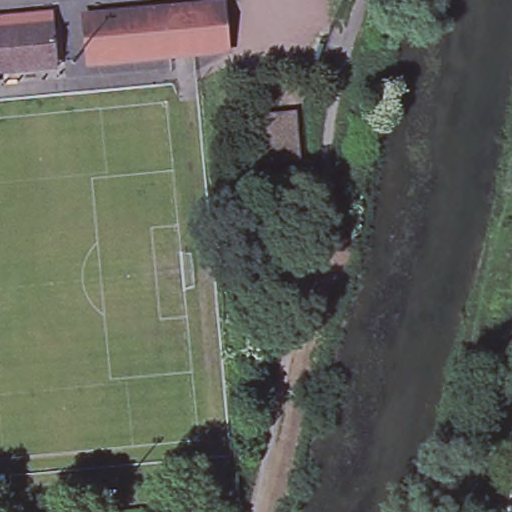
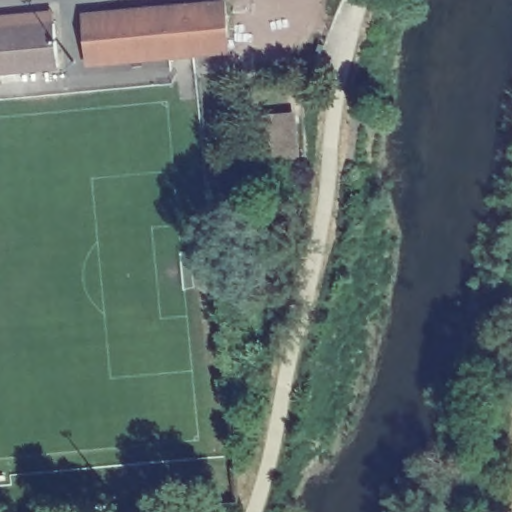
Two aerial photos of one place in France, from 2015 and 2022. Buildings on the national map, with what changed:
unchanged [(130,59),(95,62),(90,14),(128,10),(222,0),(227,0),(232,49),(130,59)]
unchanged [(55,17),(60,60),(0,66),(0,12),(55,6),(55,17)]
unchanged [(0,66),(1,76),(0,76),(0,66)]
unchanged [(293,159),(260,162),(256,120),(290,117),(293,159)]

